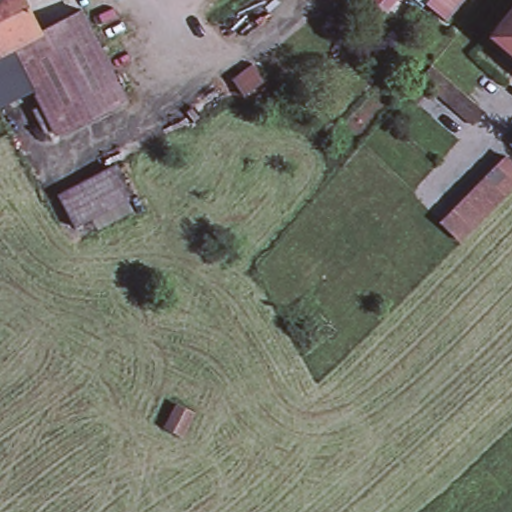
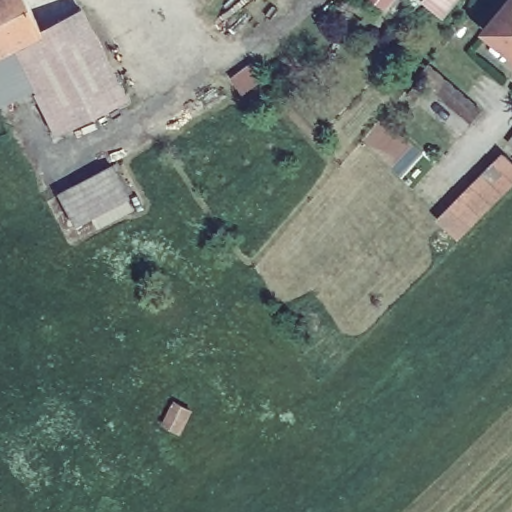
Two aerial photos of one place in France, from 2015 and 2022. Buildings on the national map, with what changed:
unchanged [(3,109),(0,103),(0,0),(30,0),(44,30),(85,10),(131,101),(63,134),(46,101),(40,104),(35,93),(3,109)]
unchanged [(422,0),(423,0),(423,1),(422,0)]
unchanged [(451,14),(434,0),(461,0),(451,14)]
unchanged [(512,2),(512,53),(487,32),(512,2)]
unchanged [(253,61),(266,77),(245,92),(233,77),(253,61)]
unchanged [(427,66),(481,114),(471,126),(416,79),(427,66)]
unchanged [(423,91),(413,102),(406,96),(415,85),(423,91)]
unchanged [(509,147),(512,144),(512,149),(509,147)]
unchanged [(512,165),(512,193),(458,246),(439,227),(507,160),(512,165)]
unchanged [(114,169),(131,202),(77,229),(60,196),(114,169)]

